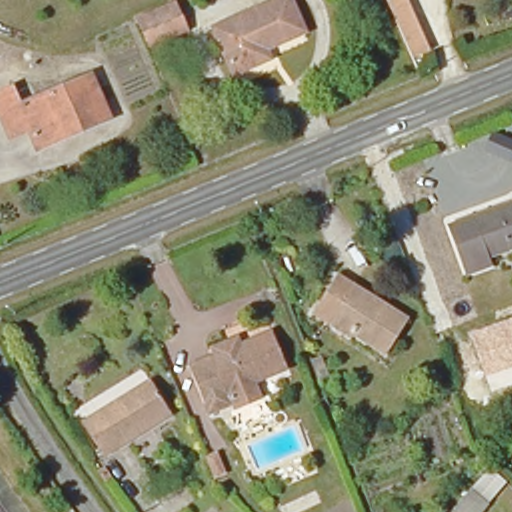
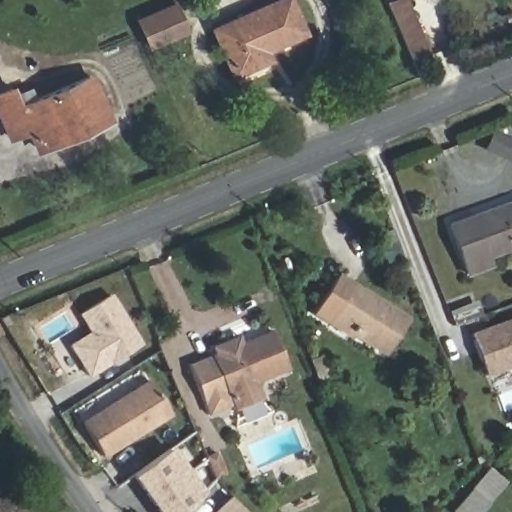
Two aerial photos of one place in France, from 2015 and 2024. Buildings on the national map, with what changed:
unchanged [(283,0),(295,0),(307,34),(267,50),(271,61),(234,75),(214,27),(283,0)]
unchanged [(431,50),(412,58),(387,1),(389,0),(409,0),(431,50)]
unchanged [(140,21),(178,6),(187,28),(149,42),(140,21)]
unchanged [(113,122),(32,156),(20,122),(0,129),(0,88),(12,84),(20,103),(92,72),(113,122)]
unchanged [(457,223),(512,201),(512,244),(488,253),(492,270),(478,275),(470,277),(448,227),(457,223)]
unchanged [(391,351),(340,323),(336,331),(313,319),(338,273),(413,315),(391,351)]
new [(77,315),(111,295),(142,345),(88,378),(68,345),(89,332),(77,315)]
unchanged [(470,333),(512,318),(512,367),(485,377),(470,333)]
unchanged [(290,370),(258,381),(263,400),(232,412),(230,402),(205,411),(185,360),(271,327),(290,370)]
unchanged [(102,452),(82,420),(148,381),(168,412),(124,439),(102,452)]
demolished [(512,386),(512,388),(511,386),(512,386)]
new [(188,512),(155,512),(130,478),(172,448),(202,492),(188,512)]
unchanged [(470,485),(491,503),(484,512),(452,512),(450,511),(470,485)]
new [(213,512),(230,497),(243,512),(213,512)]

